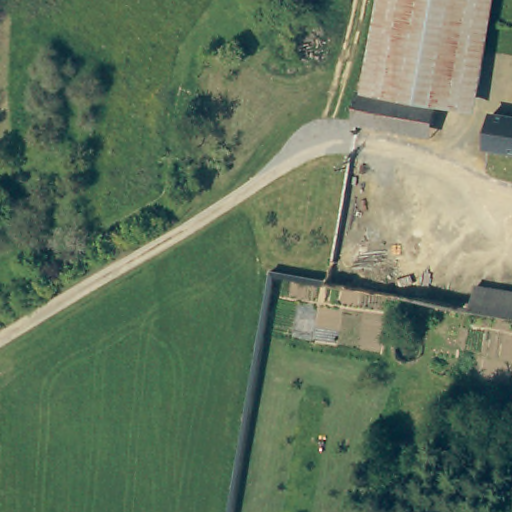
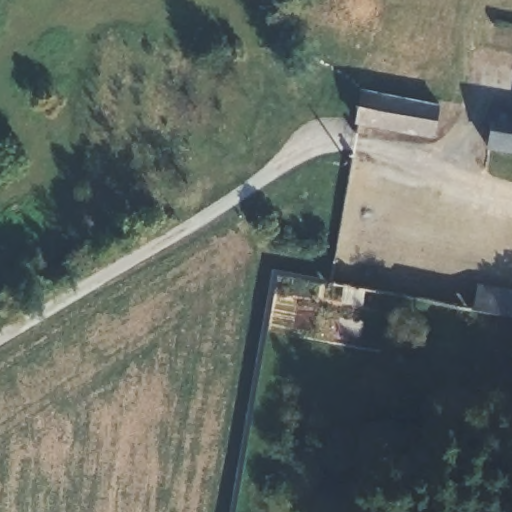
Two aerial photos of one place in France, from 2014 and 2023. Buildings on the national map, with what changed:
demolished [(366,92),(381,0),(467,0),(450,106),(425,102),(366,92)]
demolished [(467,0),(499,0),(482,111),(450,106),(467,0)]
unchanged [(366,92),(425,102),(418,137),(343,125),(349,90),(366,92)]
unchanged [(512,152),(487,148),(493,114),(512,116),(512,152)]
unchanged [(512,315),(473,310),(477,284),(512,290),(512,315)]

